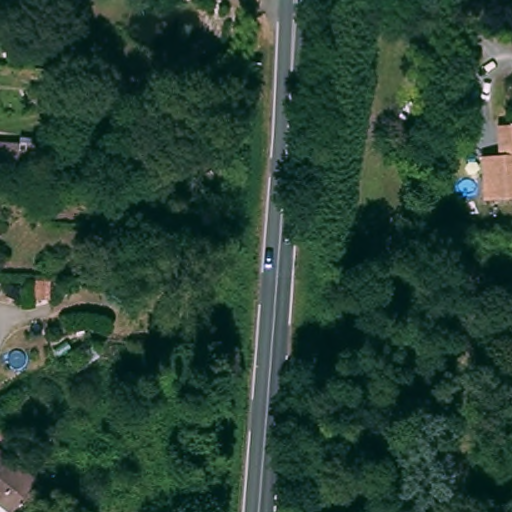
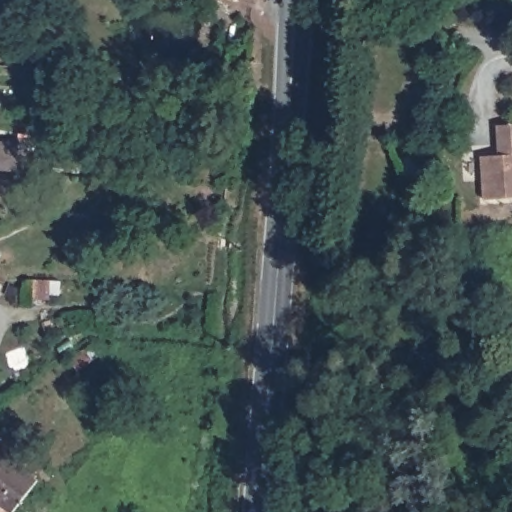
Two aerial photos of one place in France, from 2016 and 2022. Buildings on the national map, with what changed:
unchanged [(512,197),(478,194),(481,156),(497,157),(500,129),(512,130),(512,197)]
unchanged [(21,144),(18,171),(0,169),(0,142),(21,144)]
unchanged [(38,478),(13,512),(12,512),(0,503),(0,449),(38,478)]

